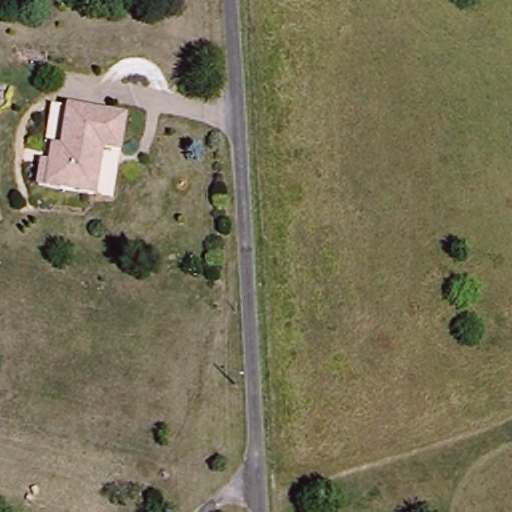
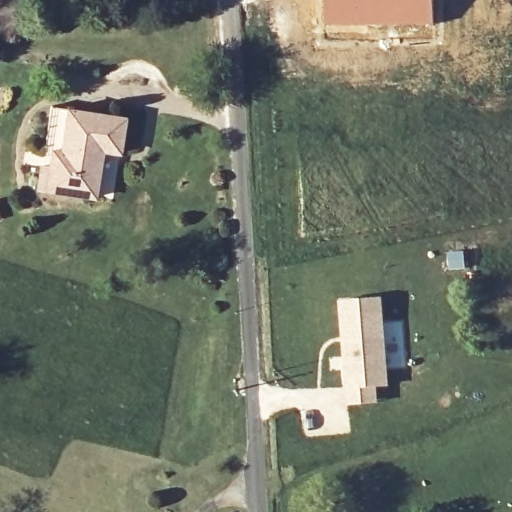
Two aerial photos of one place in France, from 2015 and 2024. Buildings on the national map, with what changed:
new [(434,0),(434,26),(324,26),(324,0),(434,0)]
unchanged [(48,171),(52,149),(62,151),(71,112),(124,122),(117,159),(101,155),(92,199),(56,191),(45,189),(48,171)]
new [(405,365),(397,366),(396,361),(389,361),(389,387),(364,389),(362,370),(342,368),(337,299),(382,296),(385,322),(402,322),(405,365)]

